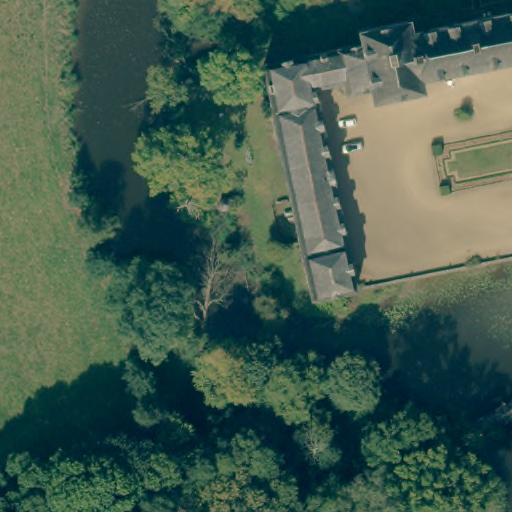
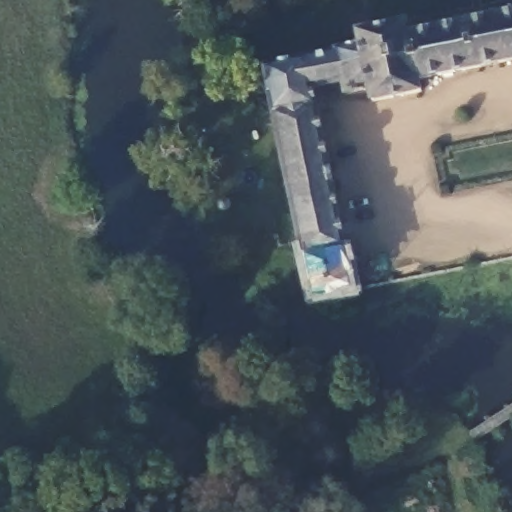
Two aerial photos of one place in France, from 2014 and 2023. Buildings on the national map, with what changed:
unchanged [(311,296),(258,60),(326,45),(351,39),(349,27),(404,17),(407,28),(512,7),(512,66),(418,83),(420,94),(368,105),(366,96),(338,101),(334,89),(307,92),(350,290),(311,296)]
unchanged [(228,194),(230,200),(226,207),(220,210),(214,208),(210,202),(211,196),(215,191),(222,190),(228,194)]

